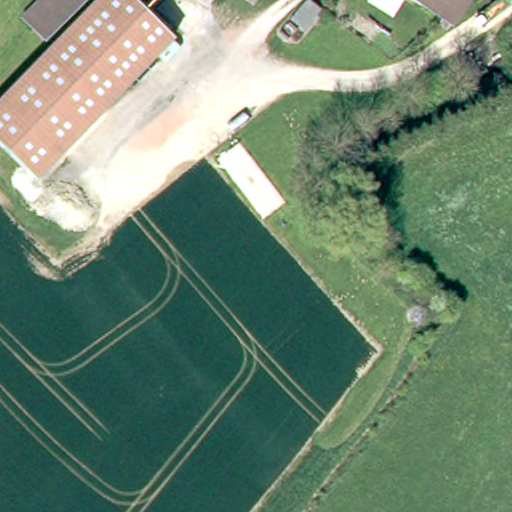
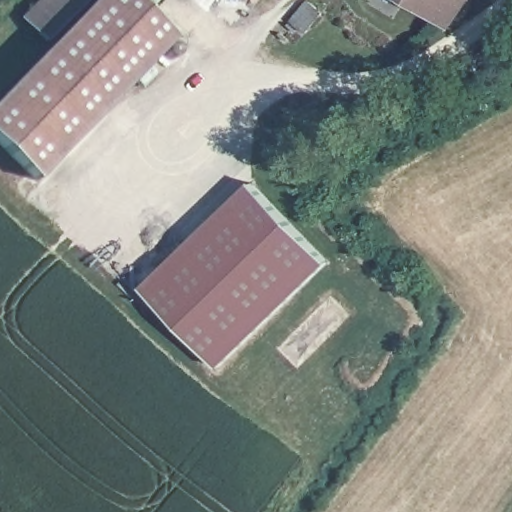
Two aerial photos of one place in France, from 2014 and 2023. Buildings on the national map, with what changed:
unchanged [(0,141),(0,93),(45,42),(19,18),(39,0),(88,0),(89,0),(132,0),(170,40),(39,179),(0,141)]
unchanged [(311,30),(295,19),(310,0),(313,0),(326,9),(311,30)]
unchanged [(451,22),(416,0),(469,0),(456,17),(451,22)]
new [(144,285),(252,181),(330,263),(222,366),(144,285)]

